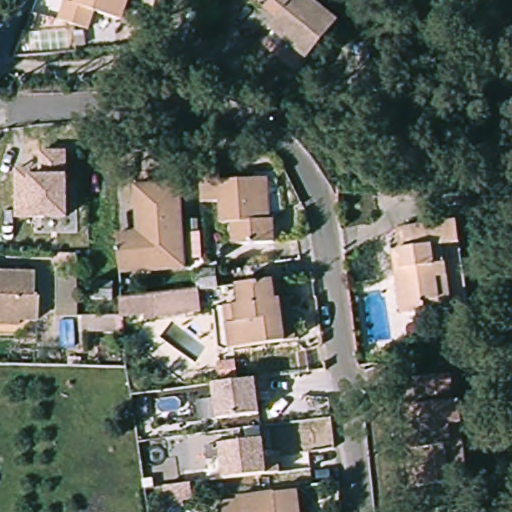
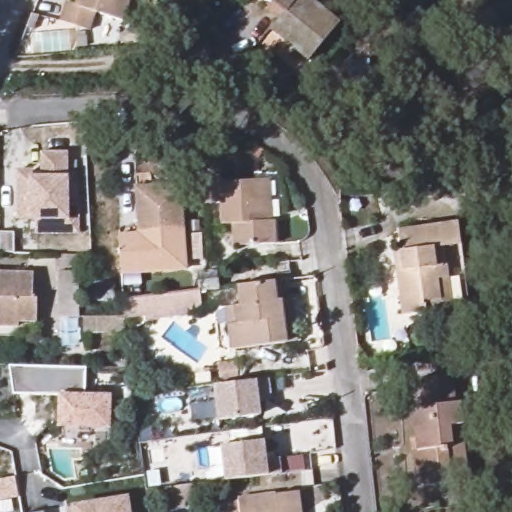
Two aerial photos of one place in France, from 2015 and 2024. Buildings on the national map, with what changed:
unchanged [(121,14),(94,5),(88,24),(58,14),(63,0),(126,0),(121,14)]
unchanged [(337,21),(306,59),(268,28),(283,10),(270,0),(311,0),(337,21)]
unchanged [(14,170),(39,170),(39,152),(64,152),(64,217),(14,217),(14,177),(14,170)]
unchanged [(203,174),(223,173),(224,185),(271,183),(274,225),(276,224),(279,247),(238,250),(236,228),(226,229),(224,207),(204,208),(203,174)]
unchanged [(179,187),(182,235),(163,236),(164,242),(138,243),(138,237),(135,191),(179,187)]
unchanged [(455,221),(467,304),(401,314),(392,251),(400,250),(397,229),(455,221)]
unchanged [(114,238),(138,237),(138,243),(164,242),(163,236),(182,235),(184,272),(118,276),(114,238)]
unchanged [(79,317),(60,317),(53,253),(78,253),(79,317)]
unchanged [(218,268),(221,286),(202,289),(199,270),(208,269),(218,268)]
unchanged [(30,302),(34,302),(34,325),(16,324),(15,330),(0,330),(0,276),(31,276),(30,302)]
unchanged [(116,281),(116,298),(98,298),(98,281),(116,281)]
unchanged [(299,345),(289,346),(235,353),(229,310),(246,309),(240,289),(274,284),(279,304),(283,304),(293,303),(299,345)]
unchanged [(203,309),(158,315),(158,317),(146,318),(146,312),(125,315),(124,299),(201,289),(203,309)]
new [(86,365),(85,392),(110,394),(109,425),(59,424),(59,393),(13,392),(9,363),(86,365)]
unchanged [(454,374),(468,480),(414,487),(411,451),(416,450),(411,406),(418,405),(414,379),(454,374)]
unchanged [(258,377),(264,377),(266,392),(254,394),(256,413),(215,419),(210,384),(258,377)]
unchanged [(228,479),(223,445),(265,439),(268,459),(280,457),(282,473),(283,473),(228,480),(228,479)]
unchanged [(236,501),(236,497),(291,490),(294,512),(222,512),(221,503),(236,501)]
new [(74,505),(127,497),(129,512),(67,512),(66,507),(74,505)]
new [(34,512),(43,510),(44,512),(34,512)]

